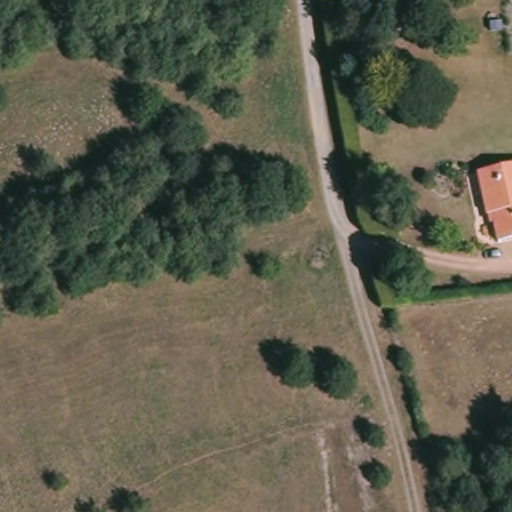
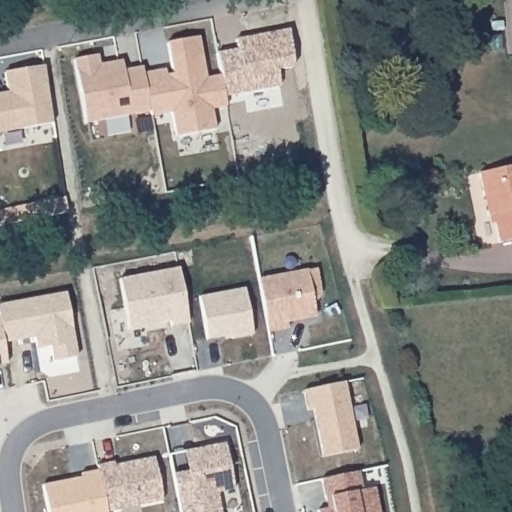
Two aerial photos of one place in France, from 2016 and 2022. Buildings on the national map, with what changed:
new [(170,62),(166,44),(197,38),(204,77),(218,72),(229,132),(214,135),(217,151),(180,157),(171,109),(149,112),(141,68),(170,62)]
new [(85,124),(73,61),(99,55),(100,65),(122,61),(124,71),(141,68),(142,68),(149,112),(85,124)]
new [(0,94),(7,93),(4,72),(44,67),(53,125),(0,133),(0,94)]
unchanged [(476,173),(512,165),(512,238),(496,242),(490,214),(484,215),(476,173)]
new [(257,278),(307,270),(318,268),(323,296),(314,305),(316,319),(288,323),(289,330),(267,333),(257,278)]
new [(177,269),(188,323),(171,327),(170,318),(127,327),(117,281),(177,269)]
new [(235,338),(234,334),(210,338),(202,297),(247,288),(255,334),(235,338)]
new [(314,409),(307,411),(303,391),(345,382),(359,451),(323,457),(314,409)]
new [(174,475),(200,470),(196,450),(228,445),(235,492),(219,495),(222,512),(181,512),(174,475)]
new [(106,512),(96,465),(115,461),(115,465),(152,457),(162,500),(106,512)]
new [(316,510),(327,507),(321,479),(359,471),(362,490),(375,488),(379,512),(316,512),(316,510)]

